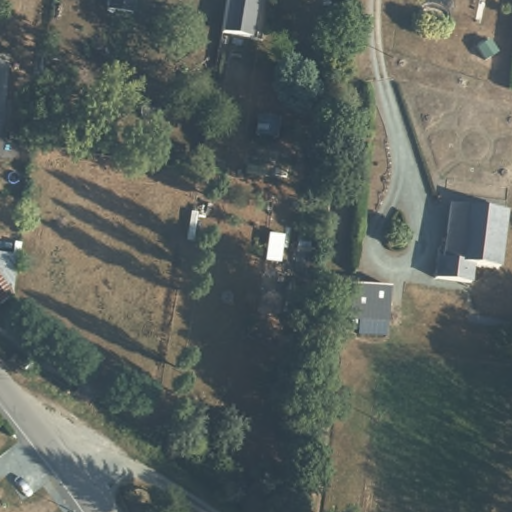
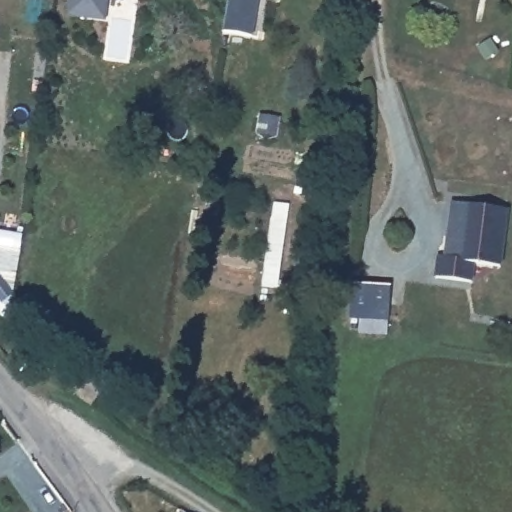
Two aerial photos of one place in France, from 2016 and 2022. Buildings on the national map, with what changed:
new [(104,0),(103,17),(70,15),(71,0),(104,0)]
unchanged [(105,2),(105,0),(130,0),(129,7),(105,2)]
unchanged [(260,0),(253,39),(223,33),(229,0),(260,0)]
unchanged [(454,192),(467,195),(512,202),(512,208),(503,262),(479,257),(475,275),(434,267),(437,246),(445,247),(454,192)]
unchanged [(0,299),(0,277),(11,290),(11,291),(10,292),(0,299)]
unchanged [(390,284),(390,320),(352,320),(352,283),(390,284)]

